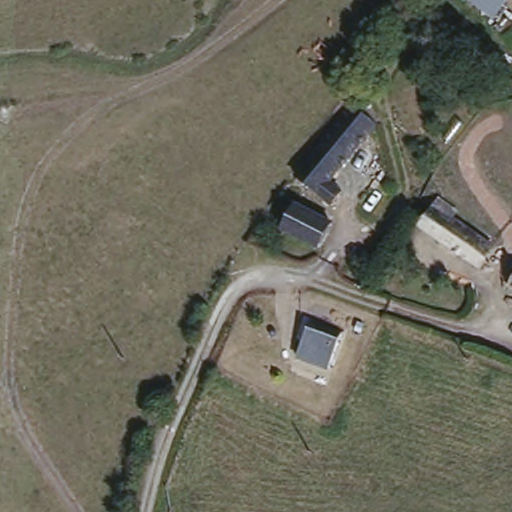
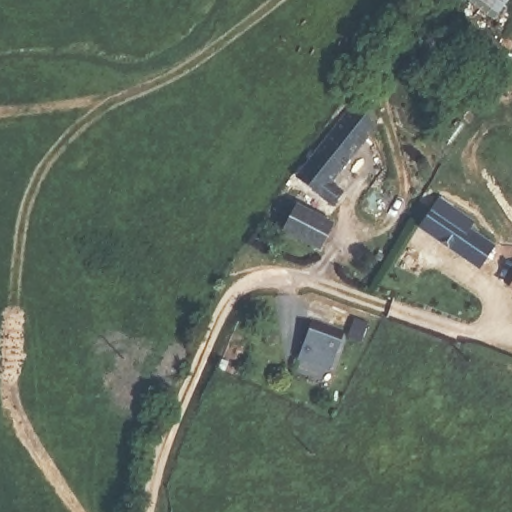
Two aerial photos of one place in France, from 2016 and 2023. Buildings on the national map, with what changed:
unchanged [(512,0),(512,1),(496,22),(468,2),(470,0),(512,0)]
unchanged [(379,17),(411,34),(392,71),(362,57),(379,17)]
unchanged [(349,108),(372,127),(326,184),(337,194),(327,207),(292,179),(349,108)]
unchanged [(334,227),(321,253),(283,235),(296,209),(334,227)]
unchanged [(495,248),(481,272),(421,232),(436,210),(495,248)]
unchanged [(512,282),(512,294),(507,291),(512,282)]
unchanged [(342,345),(330,372),(297,357),(308,332),(342,345)]

